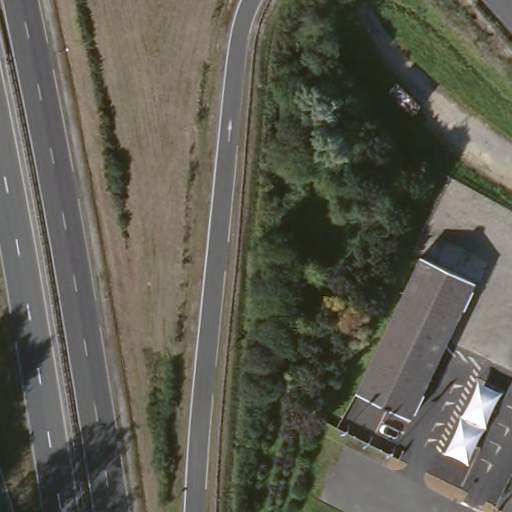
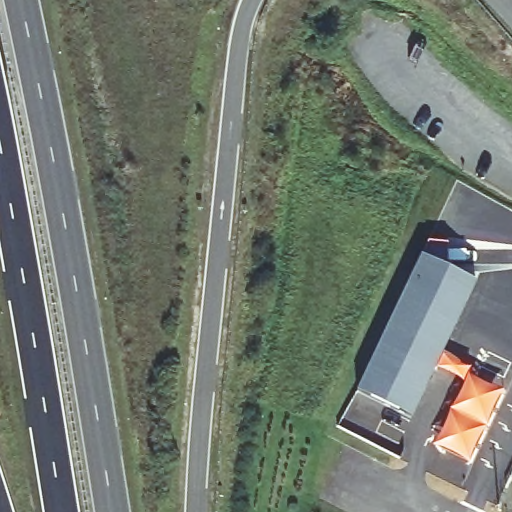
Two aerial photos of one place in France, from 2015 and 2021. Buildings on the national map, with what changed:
unchanged [(411,418),(357,392),(421,256),(475,282),(411,418)]

